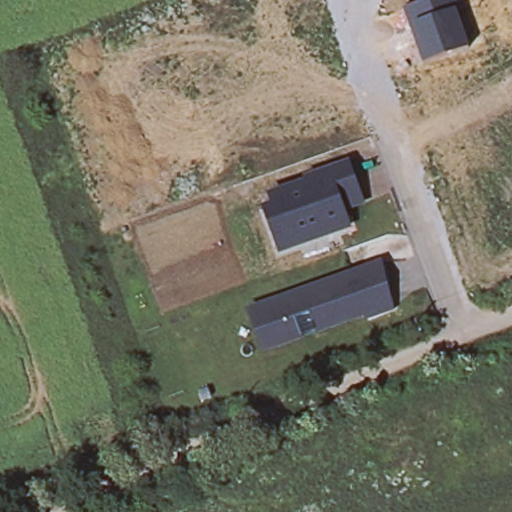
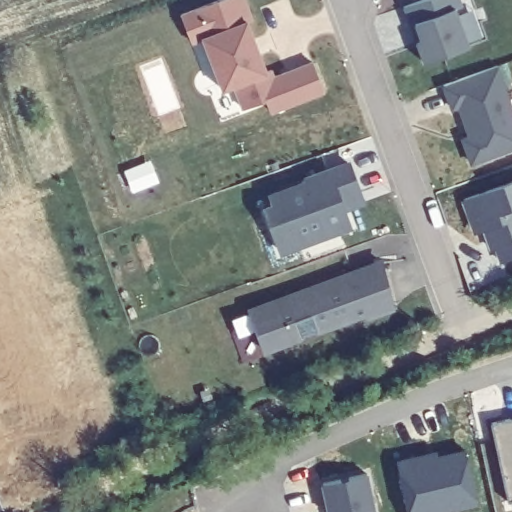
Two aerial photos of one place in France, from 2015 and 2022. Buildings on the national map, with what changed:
new [(249,22),(267,70),(273,68),(275,75),(312,62),(324,93),(270,113),(265,101),(242,109),(234,87),(222,91),(202,40),(192,43),(180,12),(214,0),(246,0),(254,20),(249,22)]
unchanged [(427,0),(460,0),(462,4),(455,7),(469,44),(422,61),(404,9),(427,0)]
new [(498,69),(512,109),(512,152),(473,165),(465,142),(472,139),(461,108),(454,111),(445,87),(498,69)]
unchanged [(283,249),(267,206),(277,203),(273,193),(310,179),(309,176),(350,161),(362,190),(365,200),(345,207),(352,224),(330,232),(307,240),(283,249)]
new [(474,226),(465,201),(512,186),(512,264),(505,266),(500,252),(495,254),(487,232),(477,235),(474,226)]
unchanged [(367,322),(364,316),(264,354),(249,310),(381,259),(396,310),(367,322)]
new [(374,512),(329,512),(322,484),(366,474),(372,506),(374,512)]

